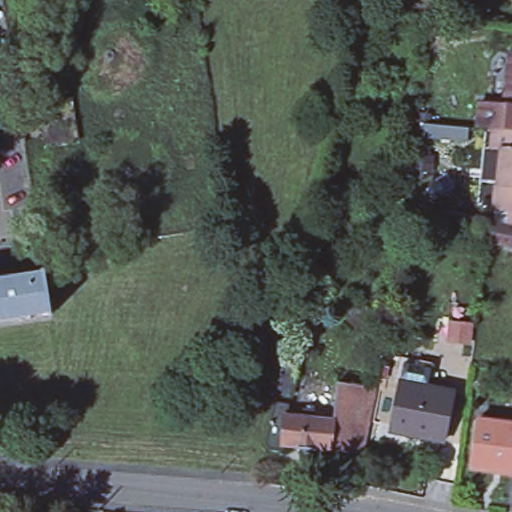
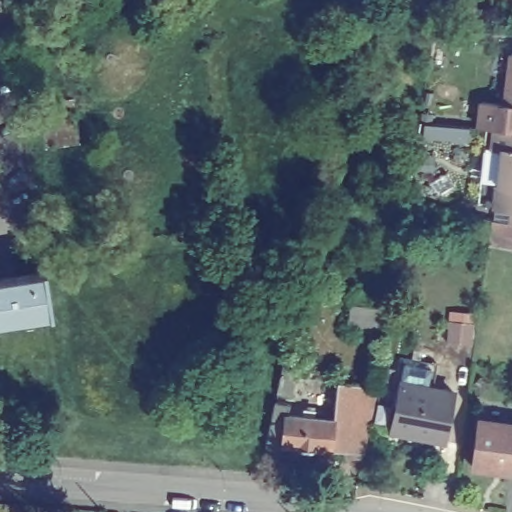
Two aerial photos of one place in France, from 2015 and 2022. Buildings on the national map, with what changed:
unchanged [(510,104),(510,103),(512,88),(512,104),(510,104)]
unchanged [(80,140),(50,147),(42,103),(74,99),(80,140)]
unchanged [(497,219),(482,217),(484,203),(492,126),(485,125),(488,100),(510,103),(510,104),(512,104),(512,245),(494,243),(497,219)]
unchanged [(57,313),(0,322),(0,277),(49,270),(57,313)]
unchanged [(472,327),(470,347),(450,344),(453,324),(472,327)]
unchanged [(399,433),(408,392),(402,390),(407,366),(437,372),(432,397),(459,402),(449,449),(429,446),(397,439),(399,433)]
unchanged [(284,448),(287,419),(334,423),(339,384),(356,387),(347,453),(284,448)]
unchanged [(360,463),(349,462),(347,458),(347,453),(356,387),(377,391),(364,462),(360,463)]
unchanged [(477,464),(483,419),(512,422),(512,469),(477,464)]

